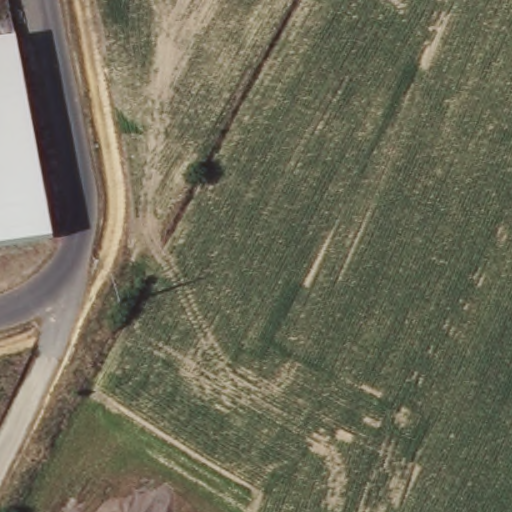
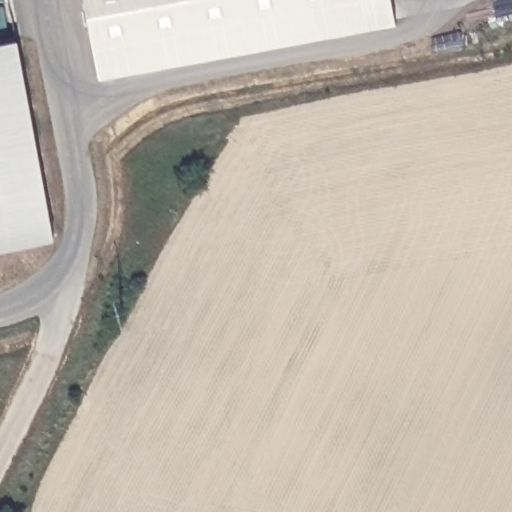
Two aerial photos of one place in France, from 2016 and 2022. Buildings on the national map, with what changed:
new [(85,0),(393,0),(397,23),(100,78),(85,0)]
unchanged [(0,248),(0,42),(17,39),(55,239),(0,248)]

